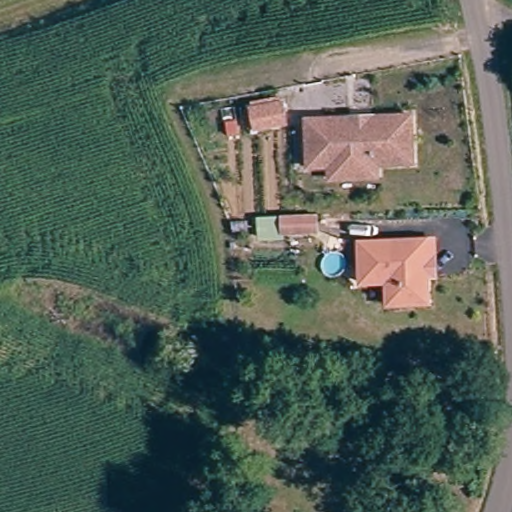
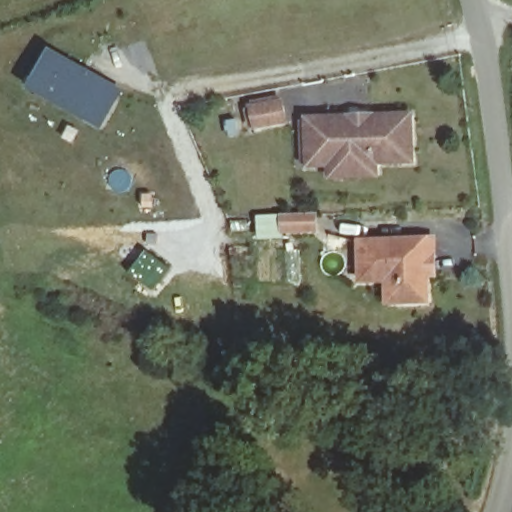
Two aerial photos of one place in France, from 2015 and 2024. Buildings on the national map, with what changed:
new [(125,90),(102,128),(27,89),(49,49),(125,90)]
unchanged [(292,98),(296,118),(267,123),(262,104),(292,98)]
unchanged [(341,179),(340,166),(320,168),(316,120),(358,117),(381,115),(420,112),(424,159),(388,162),(390,175),(341,179)]
unchanged [(321,231),(290,233),(287,219),(319,216),(321,231)]
unchanged [(385,278),(360,278),(357,243),(429,239),(431,256),(432,275),(424,275),(426,300),(403,302),(388,303),(385,278)]

